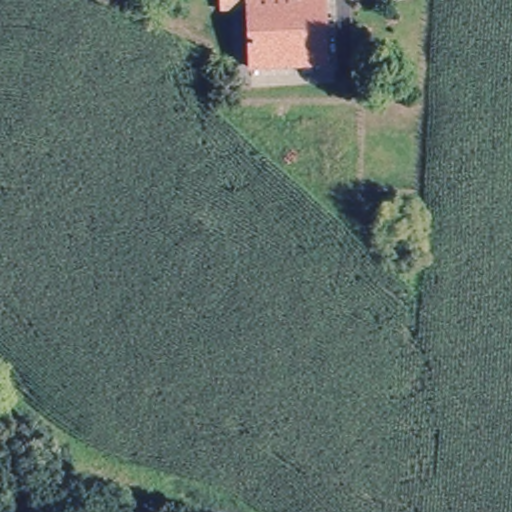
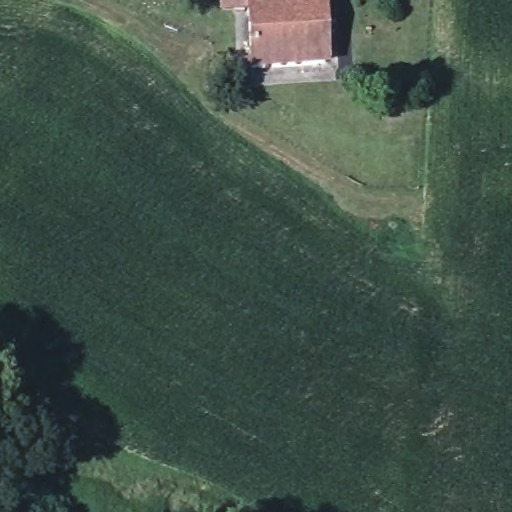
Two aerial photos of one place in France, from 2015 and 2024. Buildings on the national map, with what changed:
unchanged [(218,10),(217,0),(243,0),(317,0),(320,65),(247,69),(244,9),(218,10)]

